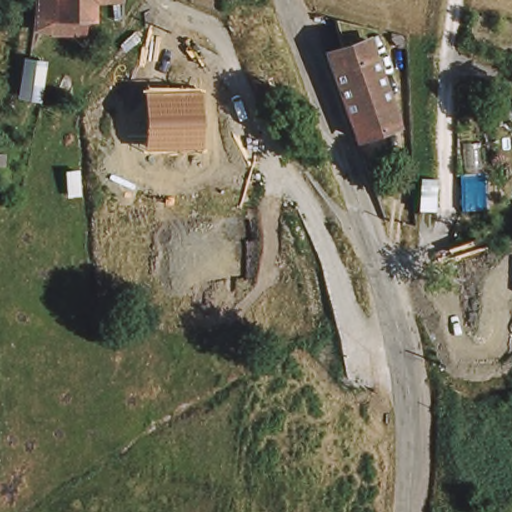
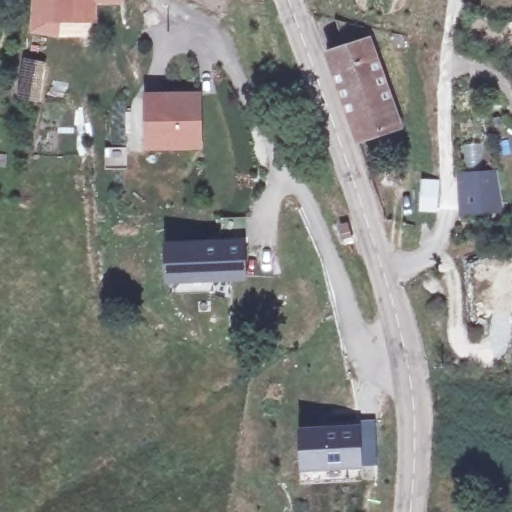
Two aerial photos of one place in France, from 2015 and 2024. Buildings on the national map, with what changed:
unchanged [(37,25),(38,0),(99,0),(91,29),(37,25)]
unchanged [(369,42),(377,61),(402,123),(355,141),(354,138),(325,64),(324,59),(369,42)]
unchanged [(23,99),(24,65),(47,67),(46,84),(40,84),(39,101),(23,99)]
unchanged [(202,91),(203,149),(144,150),(142,91),(202,91)]
new [(498,169),(504,213),(459,214),(456,172),(498,169)]
new [(245,238),(247,280),(229,280),(231,299),(205,290),(169,292),(167,283),(164,283),(162,240),(245,238)]
new [(360,422),(376,419),(377,464),(362,467),(300,472),(299,429),(360,422)]

